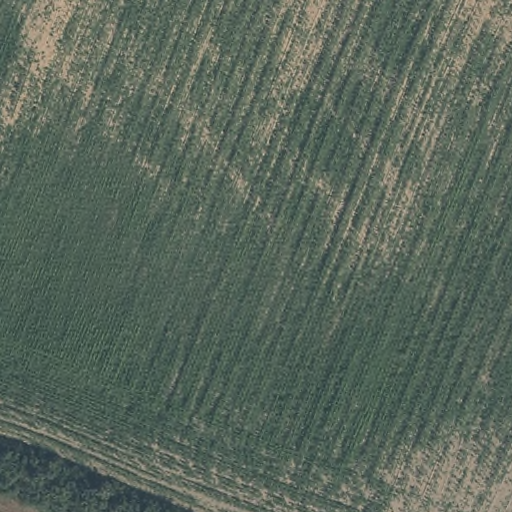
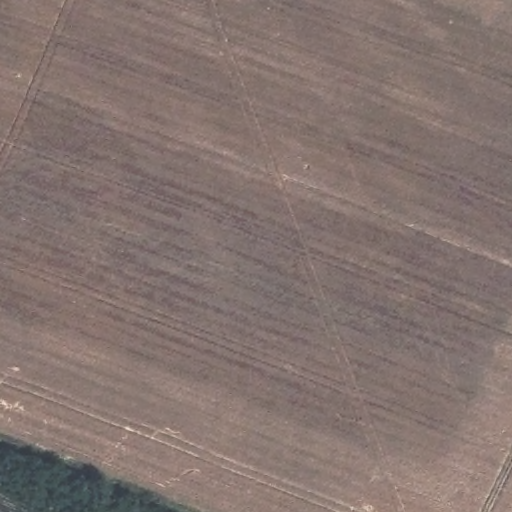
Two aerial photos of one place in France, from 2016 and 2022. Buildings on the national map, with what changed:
[]

